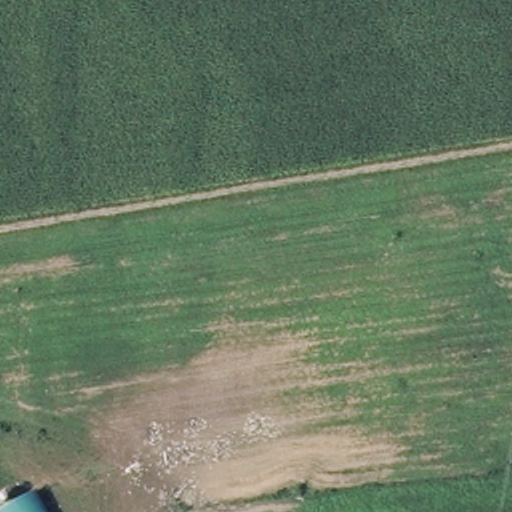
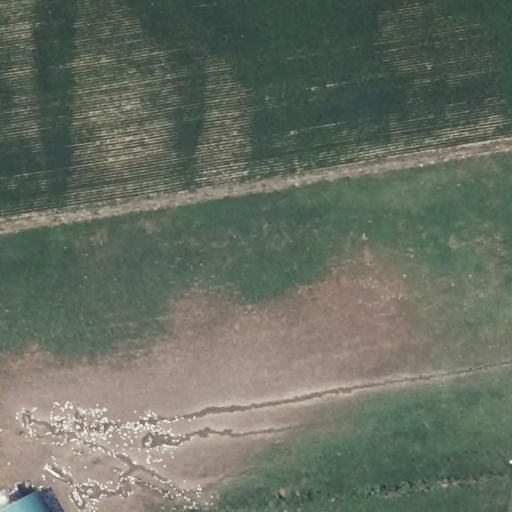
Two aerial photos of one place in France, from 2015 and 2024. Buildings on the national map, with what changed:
unchanged [(0,512),(0,500),(2,499),(9,509),(32,496),(41,512),(0,512)]

